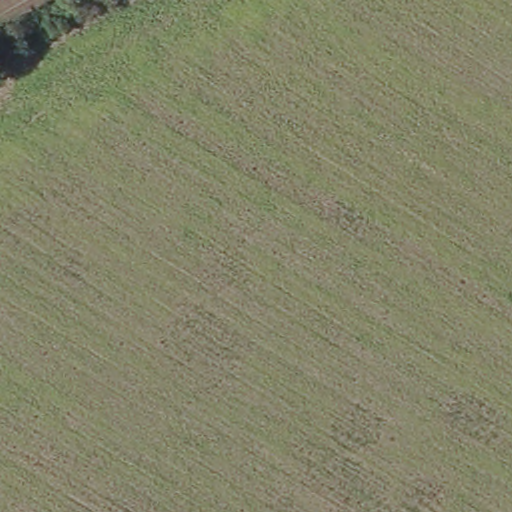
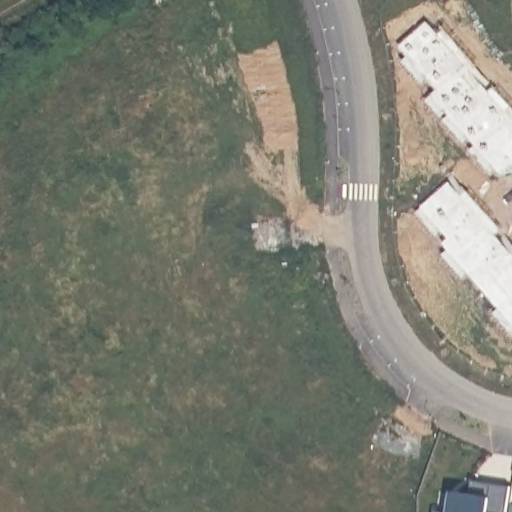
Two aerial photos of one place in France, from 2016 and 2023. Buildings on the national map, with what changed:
new [(439,33),(445,27),(512,106),(512,170),(500,181),(427,105),(433,97),(401,63),(407,59),(398,49),(426,21),(439,33)]
new [(512,243),(512,337),(490,316),(496,309),(468,278),(463,282),(441,257),(447,252),(441,246),(447,241),(442,234),(436,240),(413,215),(452,177),(512,243)]

